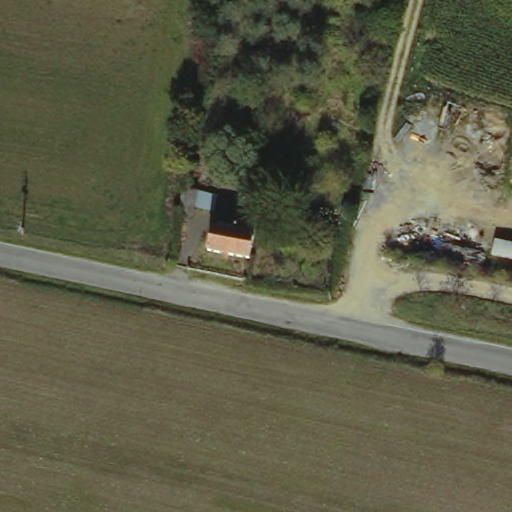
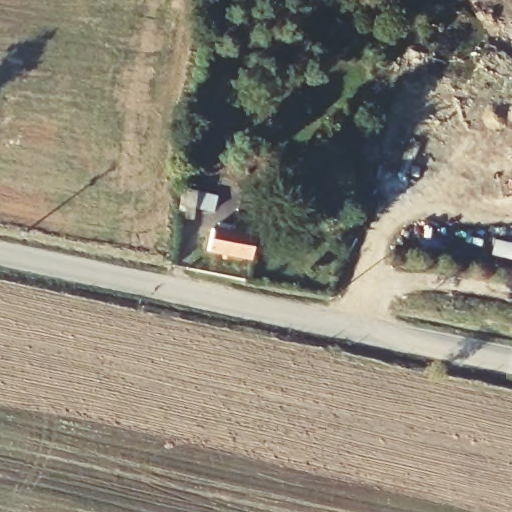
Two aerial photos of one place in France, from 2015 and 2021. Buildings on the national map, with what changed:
unchanged [(202,253),(206,230),(212,231),(213,223),(229,226),(234,194),(259,199),(264,199),(260,219),(256,219),(249,261),(202,253)]
unchanged [(176,195),(214,198),(214,217),(175,213),(176,195)]

